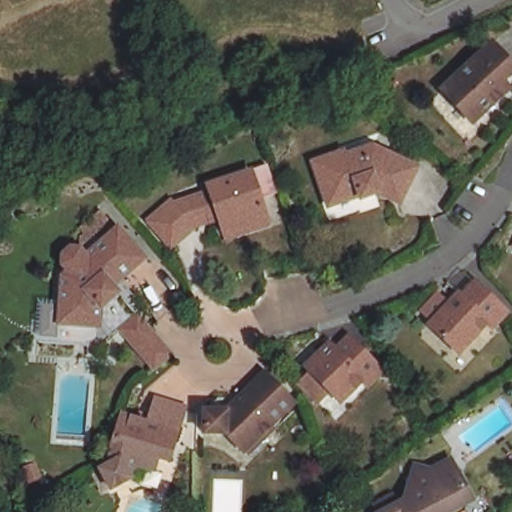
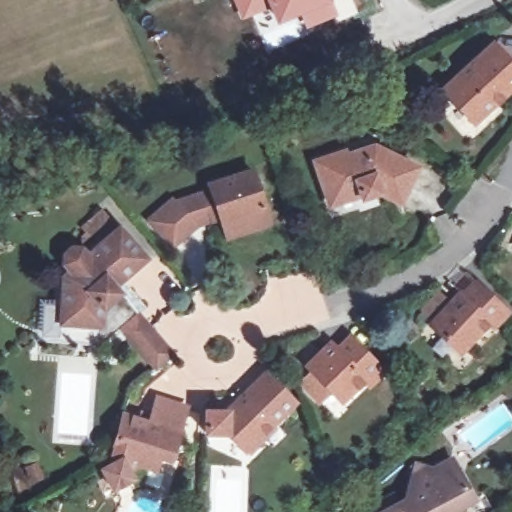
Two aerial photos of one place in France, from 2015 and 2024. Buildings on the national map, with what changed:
new [(241,21),(233,0),(265,0),(269,10),(241,21)]
new [(306,30),(299,15),(276,25),(269,10),(265,0),(333,0),(339,16),(306,30)]
unchanged [(503,86),(471,115),(442,83),(491,39),(494,36),(512,55),(512,64),(502,74),(508,81),(503,86)]
unchanged [(418,165),(409,182),(398,177),(379,183),(381,189),(361,196),(359,191),(329,201),(313,159),(344,148),(346,153),(364,146),(373,143),(418,165)]
unchanged [(225,222),(202,228),(178,249),(155,226),(178,203),(181,206),(216,195),(214,187),(259,173),(275,226),(251,234),(231,240),(225,222)]
unchanged [(126,292),(133,303),(118,317),(98,333),(53,331),(57,260),(63,255),(58,249),(57,237),(65,230),(74,233),(81,240),(113,212),(143,246),(118,268),(133,286),(126,292)]
unchanged [(485,286),(512,311),(512,318),(501,329),(496,325),(465,354),(439,328),(442,324),(431,312),(447,296),(454,303),(463,295),(467,300),(469,302),(485,286)]
unchanged [(168,342),(152,355),(151,356),(118,317),(133,303),(168,342)]
unchanged [(371,371),(366,365),(341,389),(333,380),(321,390),(303,372),(313,361),(308,356),(315,349),(332,332),(339,339),(351,327),(378,353),(384,359),(371,371)]
unchanged [(250,444),(232,424),(209,423),(210,403),(232,403),(273,369),(301,400),(264,431),(269,438),(255,449),(250,444)]
unchanged [(146,468),(141,466),(131,469),(133,477),(110,483),(102,467),(109,463),(110,463),(112,455),(115,446),(121,426),(124,415),(138,420),(140,413),(152,417),(158,398),(188,407),(171,461),(159,457),(154,470),(146,468)]
unchanged [(404,495),(421,465),(434,474),(453,460),(481,496),(473,503),(477,508),(471,512),(382,512),(404,495)]

